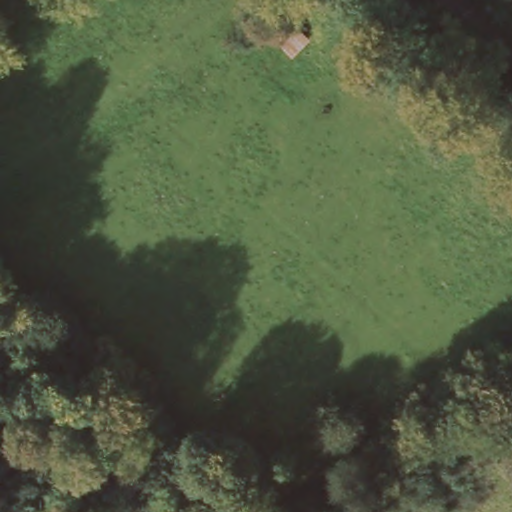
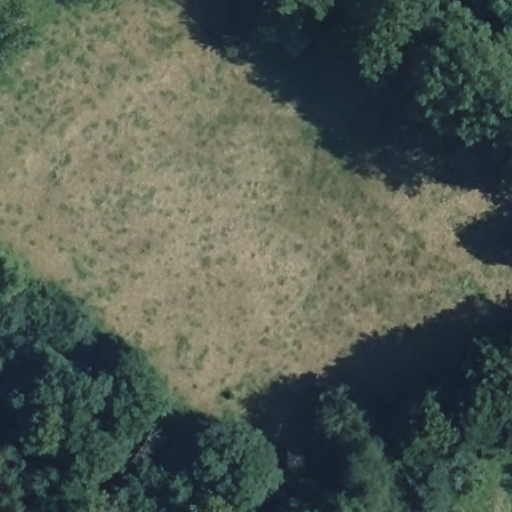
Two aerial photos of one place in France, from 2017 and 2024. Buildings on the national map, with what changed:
unchanged [(310,39),(288,61),(273,45),(292,21),(310,39)]

